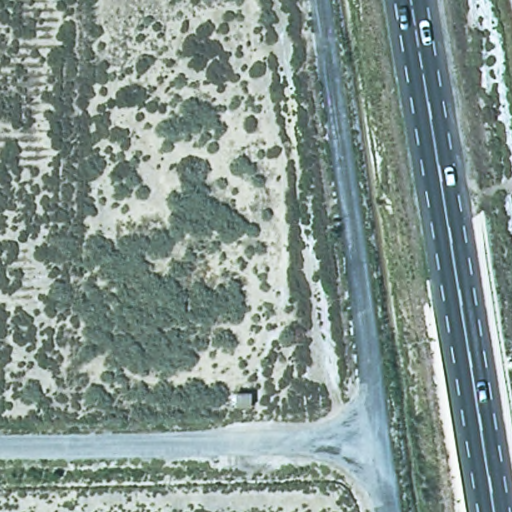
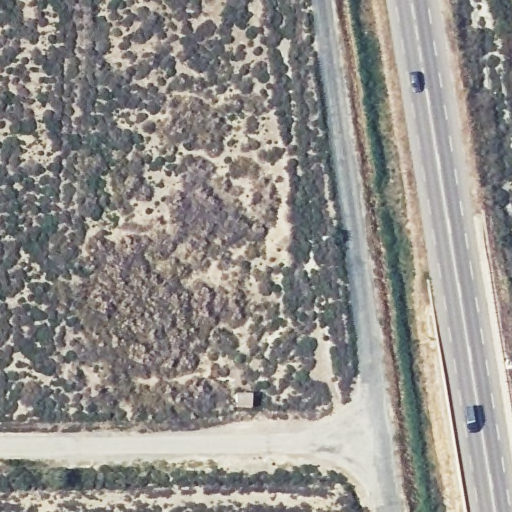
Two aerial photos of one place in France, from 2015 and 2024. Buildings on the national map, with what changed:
unchanged [(250,387),(250,411),(227,411),(230,388),(250,387)]

